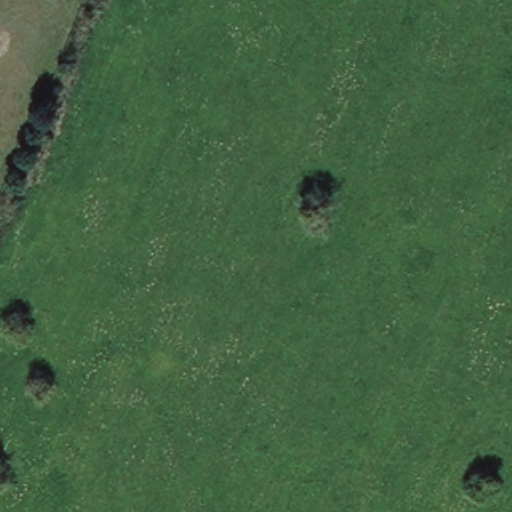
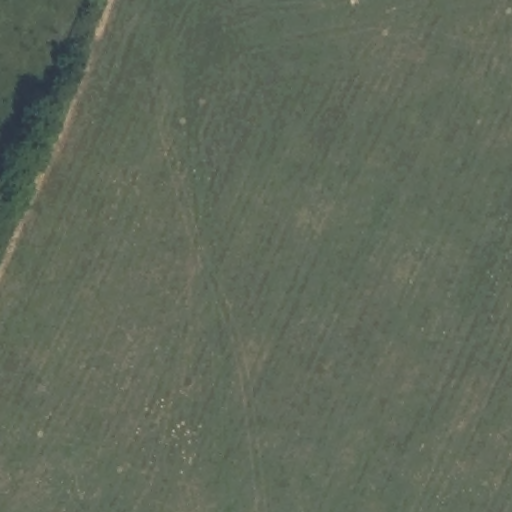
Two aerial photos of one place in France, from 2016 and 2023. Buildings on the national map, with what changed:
[]

